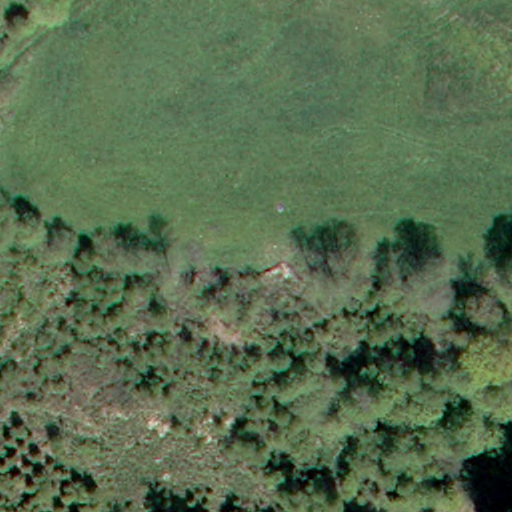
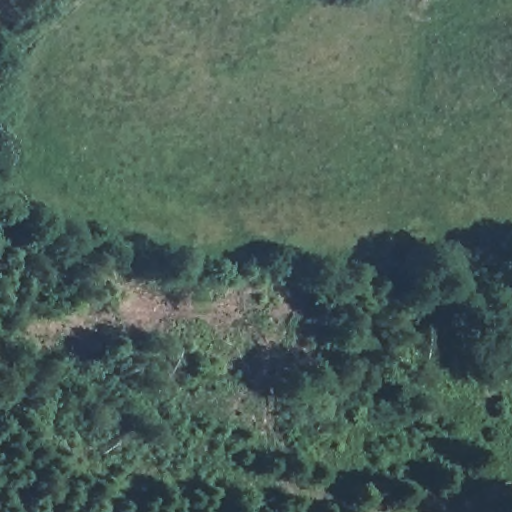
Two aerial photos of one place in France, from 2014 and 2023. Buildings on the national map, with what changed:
unchanged [(422,394),(419,406),(407,402),(409,389),(422,394)]
unchanged [(328,412),(341,417),(336,428),(324,423),(328,412)]

